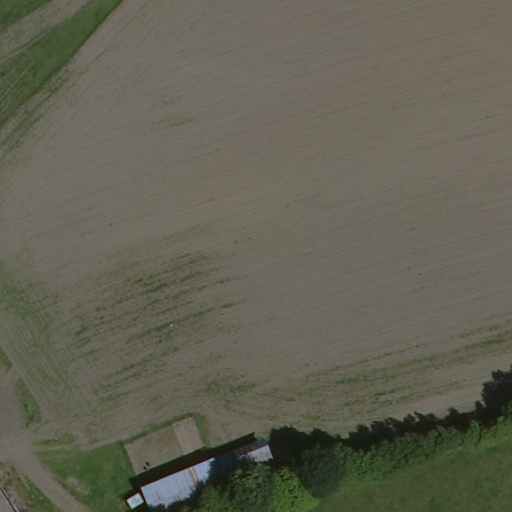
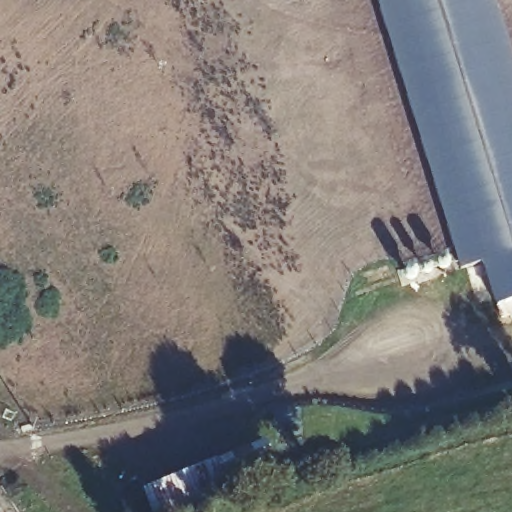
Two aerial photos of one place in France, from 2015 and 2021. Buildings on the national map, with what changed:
new [(458,266),(373,0),(494,0),(512,57),(512,298),(494,303),(481,260),(458,266)]
unchanged [(216,458),(272,435),(282,469),(230,493),(216,458)]
unchanged [(230,493),(187,512),(150,512),(140,490),(216,458),(230,493)]

